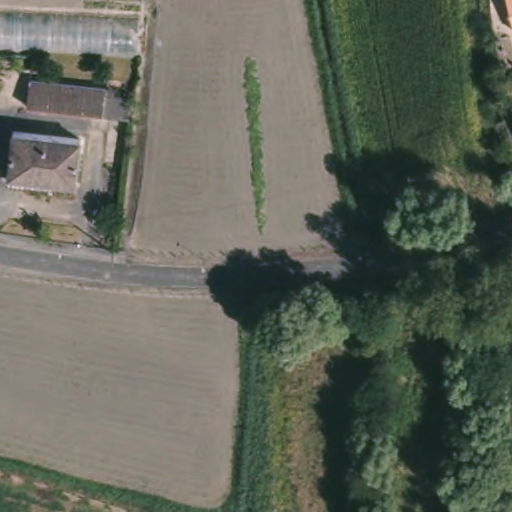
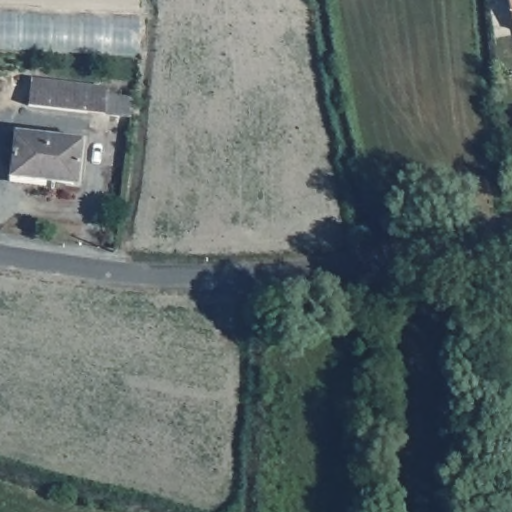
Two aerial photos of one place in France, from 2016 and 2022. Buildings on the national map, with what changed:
unchanged [(509,0),(512,0),(512,14),(509,0)]
unchanged [(0,11),(150,17),(148,52),(0,48),(0,11)]
unchanged [(129,117),(27,105),(30,79),(106,88),(105,95),(132,98),(129,117)]
unchanged [(76,185),(44,181),(44,184),(7,181),(13,135),(81,143),(76,185)]

